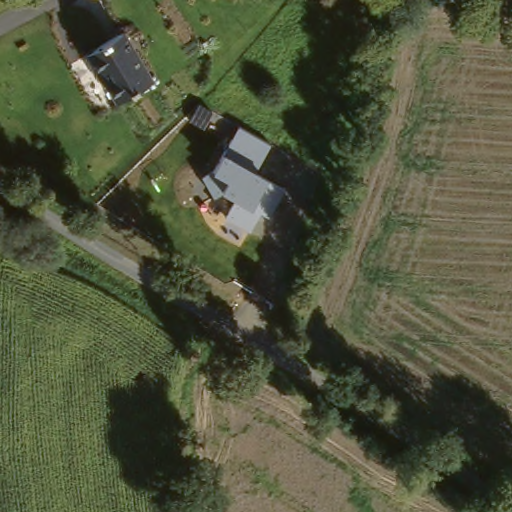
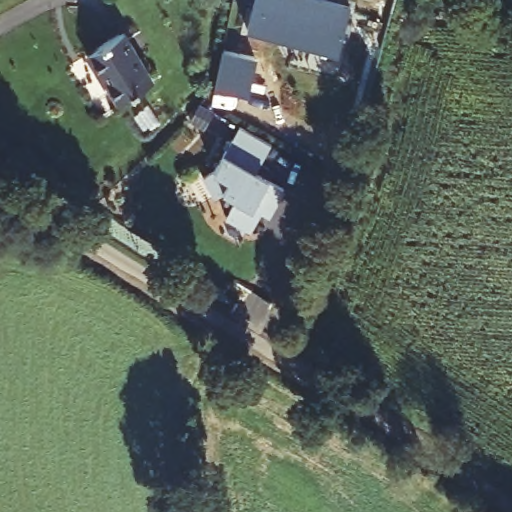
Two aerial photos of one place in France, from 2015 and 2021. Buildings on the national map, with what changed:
new [(351,5),(339,52),(247,30),(254,0),(331,0),(351,5)]
unchanged [(126,32),(158,76),(124,103),(90,57),(126,32)]
new [(257,57),(253,75),(281,82),(276,105),(265,103),(265,99),(249,95),(249,97),(213,89),(222,50),(257,57)]
unchanged [(233,199),(223,194),(215,199),(204,178),(215,170),(224,153),(240,125),(272,144),(257,171),(284,187),(269,216),(262,211),(251,229),(224,215),(233,199)]

